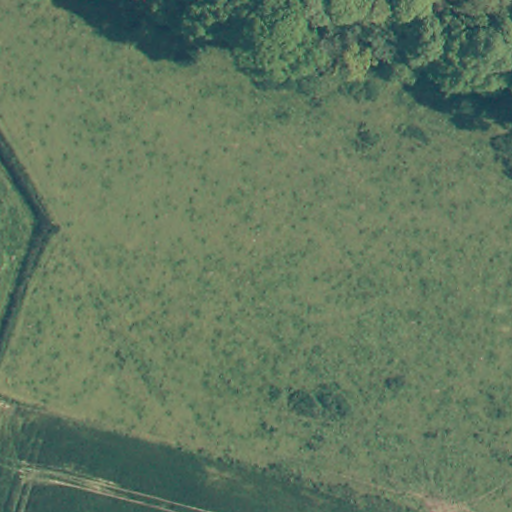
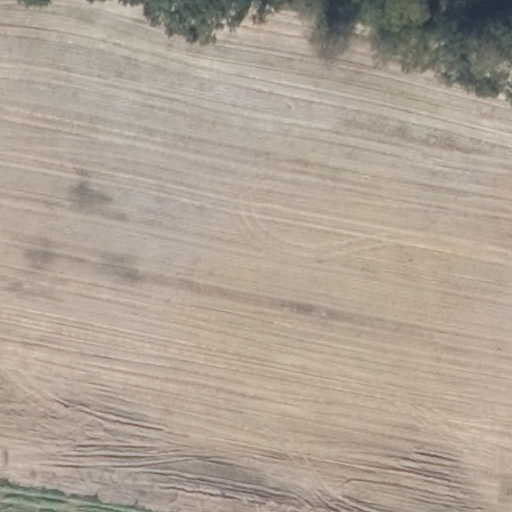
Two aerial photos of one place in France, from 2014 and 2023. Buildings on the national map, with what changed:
[]

